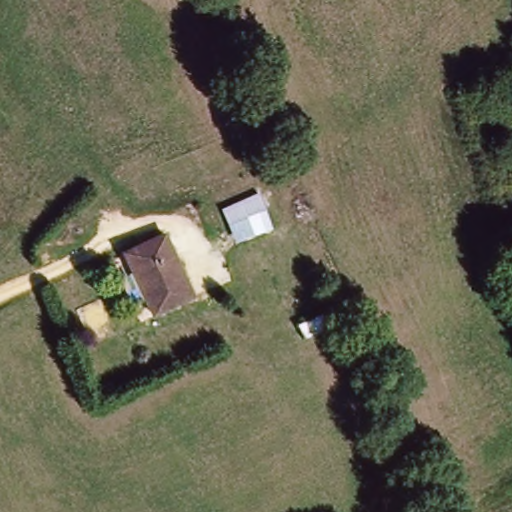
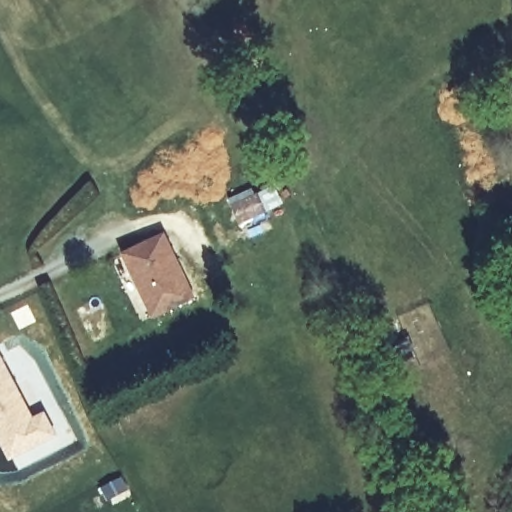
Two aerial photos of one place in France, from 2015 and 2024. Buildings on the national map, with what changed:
unchanged [(130,250),(167,234),(195,295),(159,312),(130,250)]
new [(44,410),(58,436),(9,462),(0,444),(0,354),(33,415),(44,410)]

